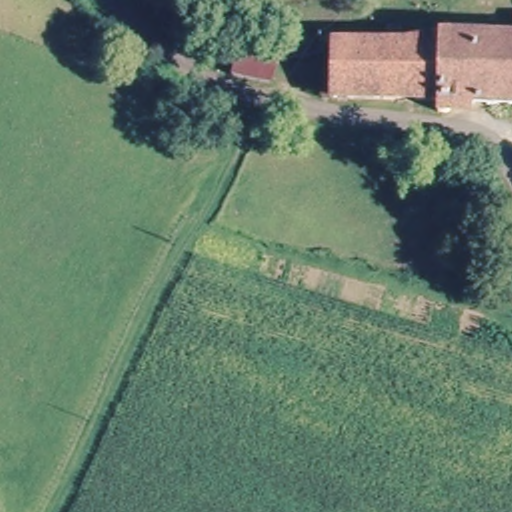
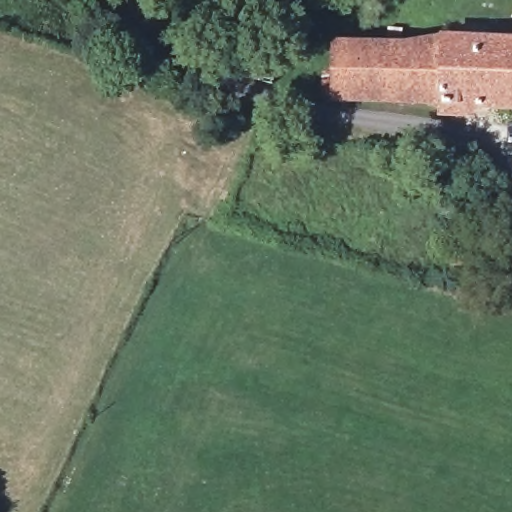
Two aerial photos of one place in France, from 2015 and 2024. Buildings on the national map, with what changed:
unchanged [(332,96),(336,47),(392,51),(447,45),(512,51),(512,113),(332,96)]
unchanged [(281,61),(272,88),(230,74),(241,49),(281,61)]

